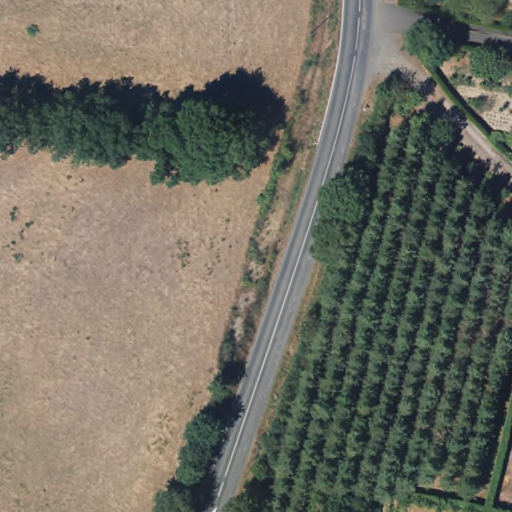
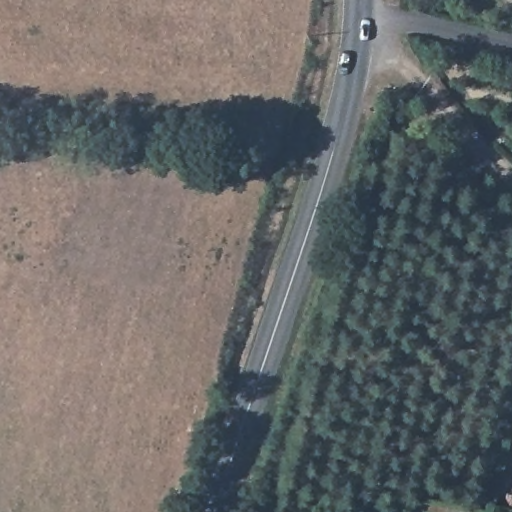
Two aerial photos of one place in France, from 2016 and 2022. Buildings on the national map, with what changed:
unchanged [(508,1),(509,0),(512,0),(512,1),(508,1)]

